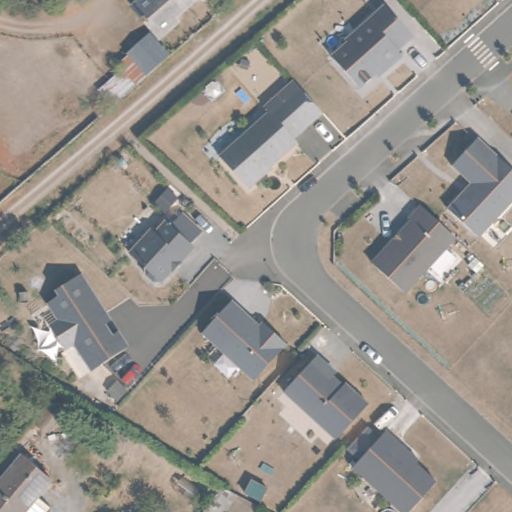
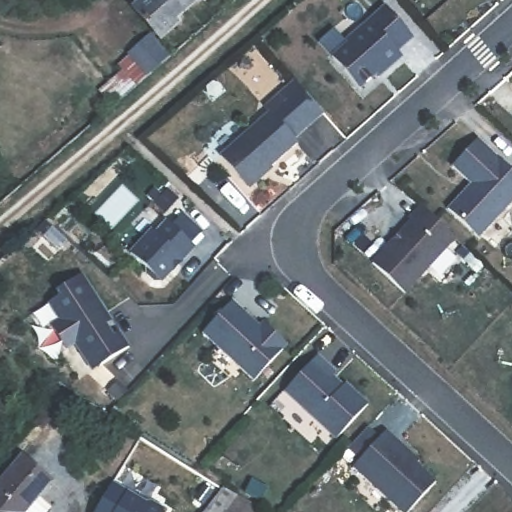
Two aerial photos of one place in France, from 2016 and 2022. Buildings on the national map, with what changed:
unchanged [(177,23),(165,34),(138,3),(141,0),(194,0),(173,18),(177,23)]
unchanged [(206,0),(207,0),(206,1),(206,0)]
unchanged [(375,73),(359,87),(331,56),(346,41),(344,40),(384,4),(412,36),(396,50),(401,55),(385,69),(377,76),(375,73)]
unchanged [(145,76),(110,102),(99,89),(122,71),(118,63),(148,34),(166,54),(145,76)]
unchanged [(268,111),(264,106),(293,79),(323,112),(294,138),(297,141),(247,187),(219,155),(268,111)]
unchanged [(475,139),(512,172),(512,200),(477,238),(446,210),(462,192),(469,184),(450,166),(475,139)]
unchanged [(453,238),(403,293),(371,264),(409,221),(407,220),(419,207),(453,238)]
unchanged [(193,242),(195,244),(163,280),(162,279),(156,280),(149,273),(149,267),(132,252),(154,228),(157,231),(168,220),(173,224),(184,212),(204,230),(193,242)]
unchanged [(53,322),(43,306),(55,298),(52,293),(77,277),(101,316),(95,320),(107,339),(113,335),(123,350),(94,368),(85,354),(77,360),(69,347),(60,352),(45,328),(53,322)]
unchanged [(254,380),(202,333),(231,301),(254,322),(252,324),(257,328),(262,322),(286,344),(254,380)]
unchanged [(345,383),(368,404),(336,438),(285,391),(317,356),(330,368),(327,371),(343,386),(345,383)]
unchanged [(418,460),(416,463),(435,481),(407,512),(401,512),(352,467),(359,460),(347,449),(367,427),(379,438),(386,431),(418,460)]
unchanged [(20,457),(50,482),(26,512),(0,512),(0,481),(20,457)]
new [(149,501),(164,512),(93,512),(112,481),(125,491),(146,503),(149,501)]
unchanged [(217,494),(231,501),(223,512),(202,512),(217,494)]

